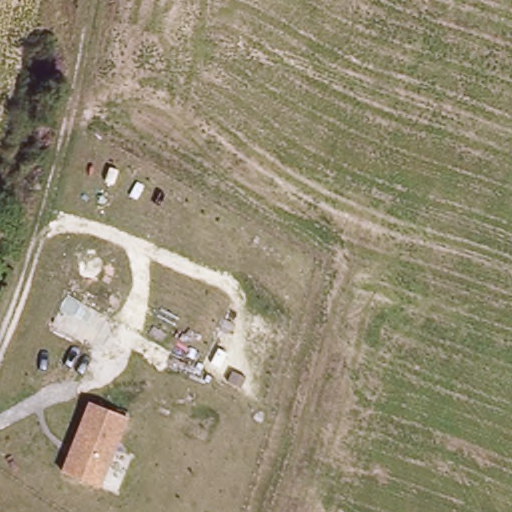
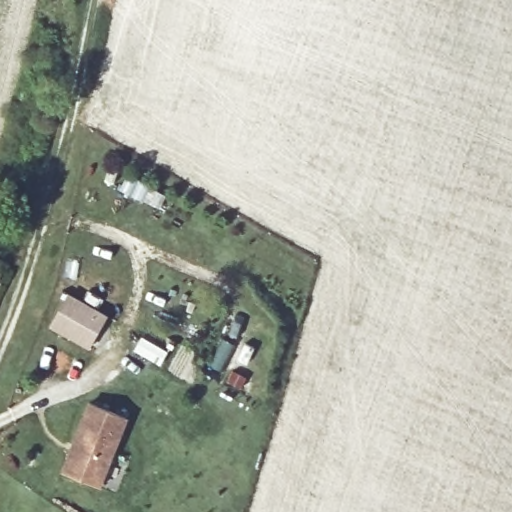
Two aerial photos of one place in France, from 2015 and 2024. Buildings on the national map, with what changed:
new [(110,315),(91,350),(50,326),(70,292),(110,315)]
unchanged [(92,403),(129,419),(100,486),(63,471),(69,457),(74,446),(92,403)]

